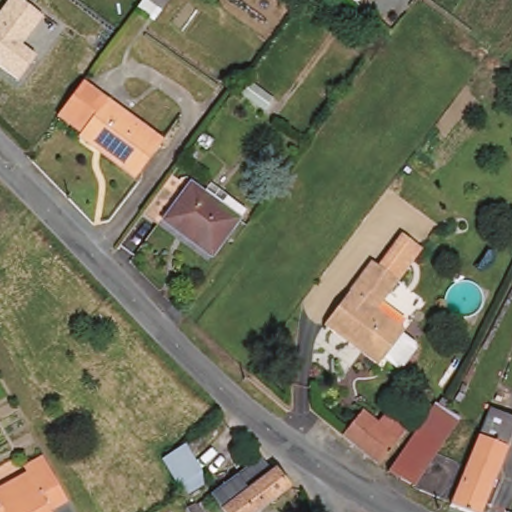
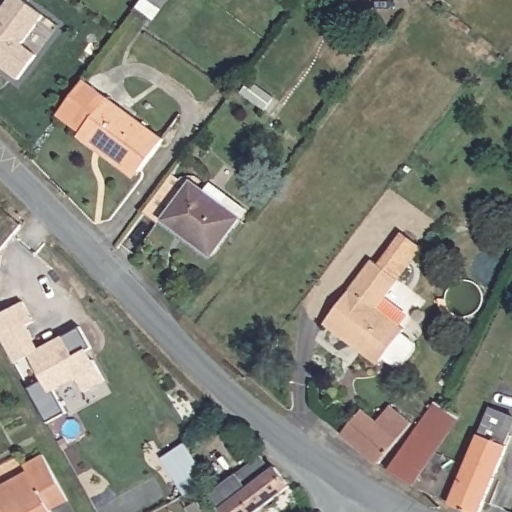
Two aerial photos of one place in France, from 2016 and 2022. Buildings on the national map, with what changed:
unchanged [(10,0),(23,0),(42,16),(22,44),(37,56),(18,80),(0,66),(0,13),(10,0)]
unchanged [(150,0),(169,0),(162,9),(150,0)]
unchanged [(75,101),(86,87),(159,141),(136,172),(102,146),(98,150),(80,136),(83,133),(62,118),(75,101)]
unchanged [(170,172),(185,184),(158,221),(153,226),(139,215),(170,172)]
unchanged [(185,184),(200,194),(206,185),(222,197),(215,205),(235,221),(208,259),(158,221),(185,184)]
unchanged [(378,266),(402,234),(422,249),(398,280),(378,266)]
unchanged [(357,349),(326,326),(374,263),(398,280),(375,311),(401,330),(377,361),(376,362),(372,360),(368,359),(355,351),(357,349)]
new [(82,343),(79,346),(85,356),(97,376),(77,388),(69,374),(47,388),(61,410),(42,421),(22,387),(36,378),(21,355),(7,363),(0,351),(0,308),(12,301),(24,320),(16,325),(30,348),(70,323),(82,343)]
unchanged [(405,319),(398,328),(375,311),(382,302),(405,319)]
unchanged [(416,342),(417,349),(399,371),(379,358),(399,332),(416,342)]
unchanged [(431,409),(447,417),(457,423),(432,454),(427,453),(411,490),(408,487),(385,472),(431,409)]
unchanged [(362,411),(399,442),(377,469),(340,439),(362,411)]
unchanged [(481,433),(488,413),(512,423),(512,429),(509,437),(507,437),(502,448),(505,450),(481,512),(461,512),(451,509),(451,505),(467,468),(479,438),(481,433)]
unchanged [(198,469),(175,484),(160,463),(182,446),(198,469)]
unchanged [(39,455),(64,497),(68,503),(51,512),(48,507),(39,492),(37,490),(22,465),(39,455)]
unchanged [(267,473),(271,470),(287,489),(257,512),(221,512),(209,496),(257,459),(267,473)]
unchanged [(24,474),(20,467),(22,465),(37,490),(39,492),(48,507),(51,512),(0,512),(0,488),(24,474)]

